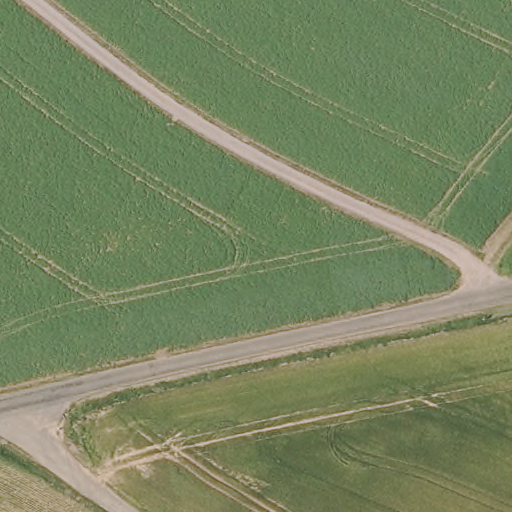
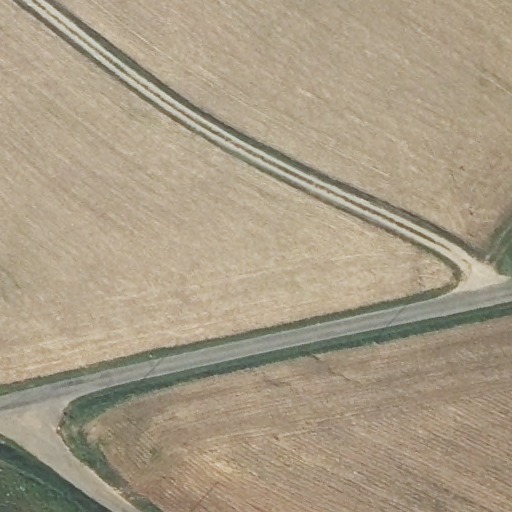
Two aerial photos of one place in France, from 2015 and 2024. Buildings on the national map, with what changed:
[]

